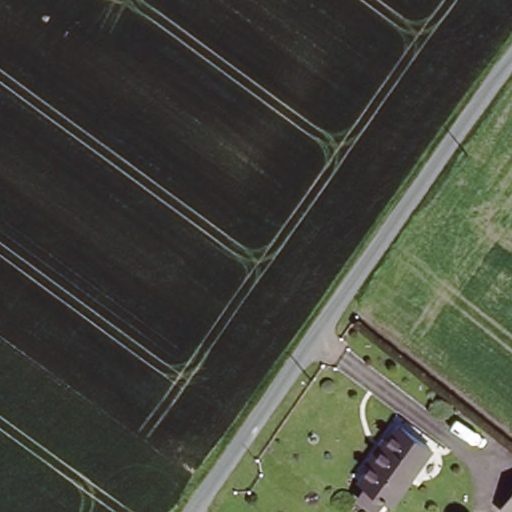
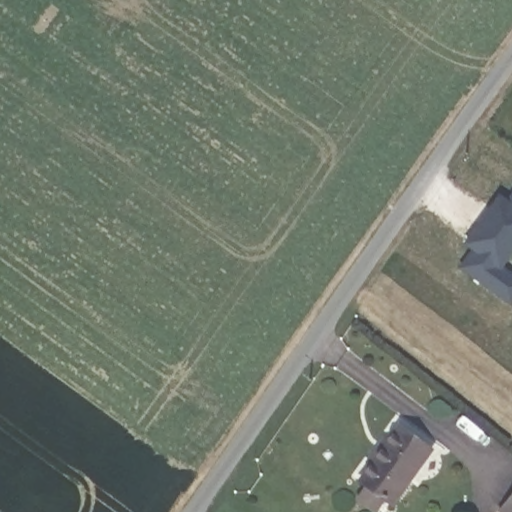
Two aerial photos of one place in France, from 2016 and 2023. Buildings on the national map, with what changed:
new [(462,268),(475,250),(471,247),(467,244),(478,227),(500,197),(508,202),(512,198),(512,253),(501,268),(512,275),(512,304),(462,268)]
unchanged [(395,509),(390,505),(385,512),(371,512),(362,505),(372,491),(364,485),(375,469),(370,465),(386,444),(392,448),(404,432),(435,456),(395,509)]
unchanged [(504,512),(503,511),(512,499),(512,512),(504,512)]

